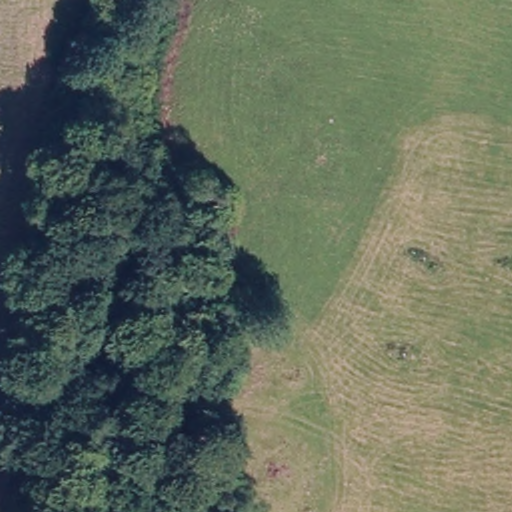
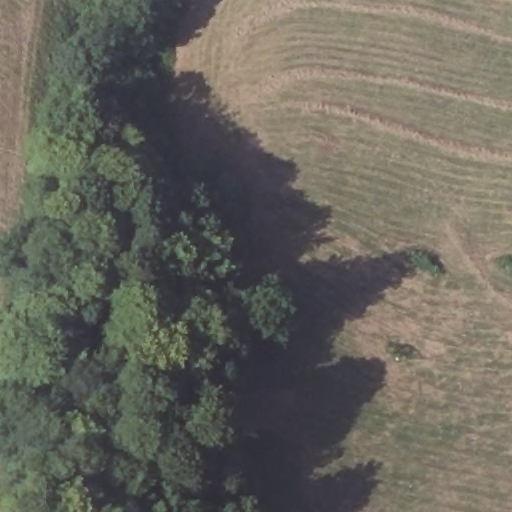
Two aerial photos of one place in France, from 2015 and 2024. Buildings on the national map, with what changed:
[]

